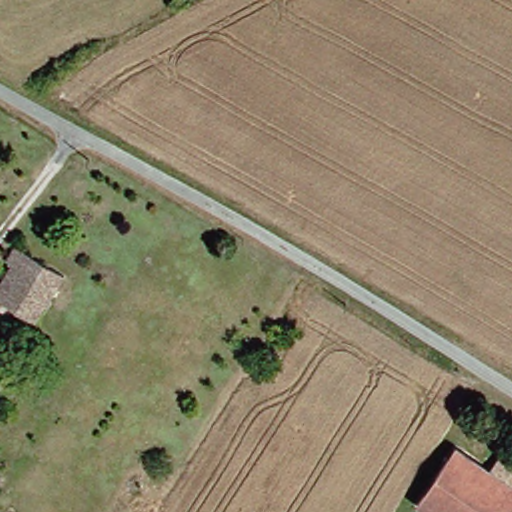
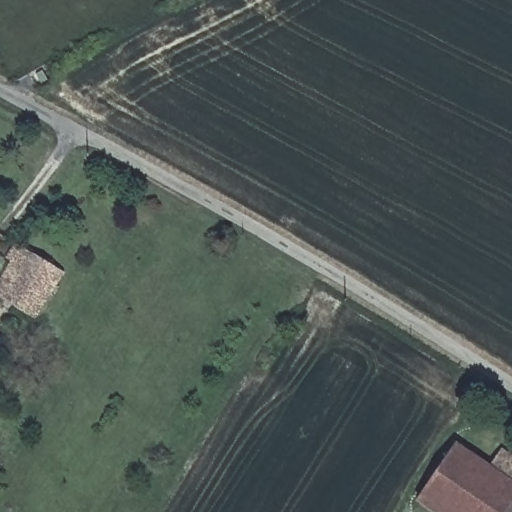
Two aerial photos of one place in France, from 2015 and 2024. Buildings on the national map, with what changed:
unchanged [(5,300),(24,266),(16,260),(25,243),(76,275),(44,325),(5,300)]
unchanged [(478,456),(442,512),(437,512),(422,501),(462,440),(481,450),(478,456)]
unchanged [(499,469),(509,452),(512,455),(512,512),(442,512),(478,456),(499,469)]

